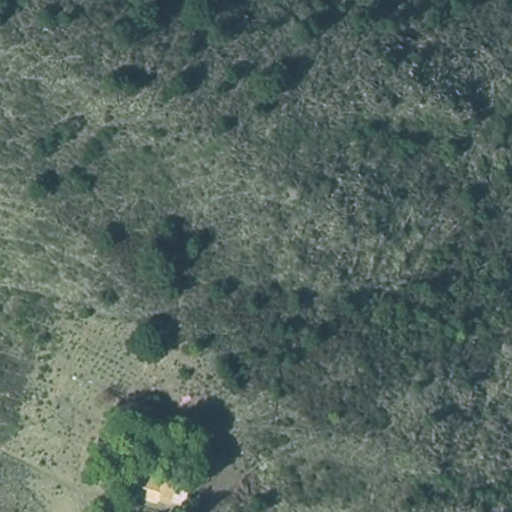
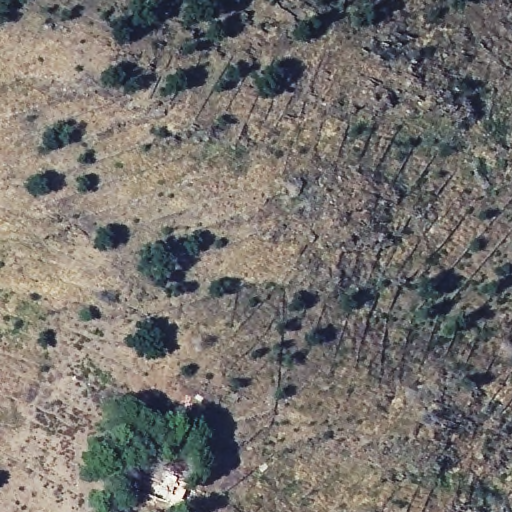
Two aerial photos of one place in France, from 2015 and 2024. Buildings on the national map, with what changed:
unchanged [(174,508),(128,494),(134,470),(182,483),(174,508)]

